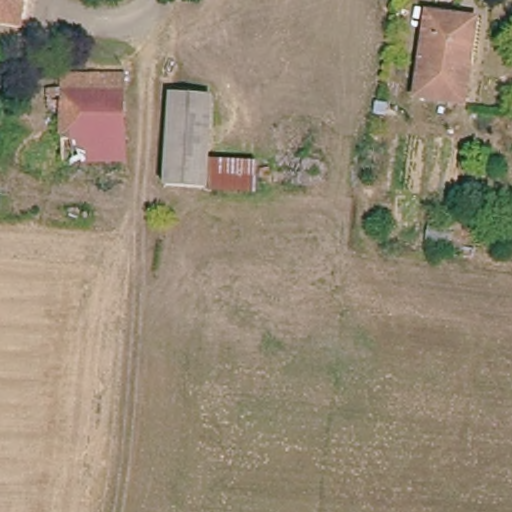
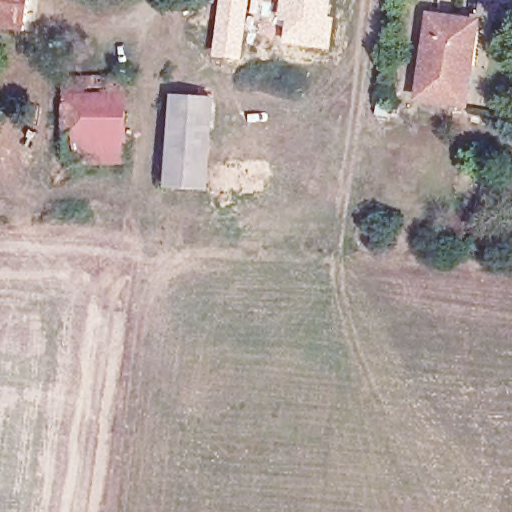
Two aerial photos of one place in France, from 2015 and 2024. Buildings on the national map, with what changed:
unchanged [(0,31),(0,0),(22,0),(14,34),(0,31)]
new [(219,0),(251,0),(242,60),(212,57),(219,0)]
new [(329,19),(333,19),(329,50),(283,44),(285,24),(276,23),(279,1),(272,0),(331,0),(329,19)]
unchanged [(464,100),(416,93),(425,16),(473,23),(464,100)]
unchanged [(64,170),(64,84),(124,86),(124,167),(64,170)]
unchanged [(163,185),(172,95),(212,99),(205,189),(163,185)]
new [(208,158),(259,161),(258,192),(205,189),(208,158)]

